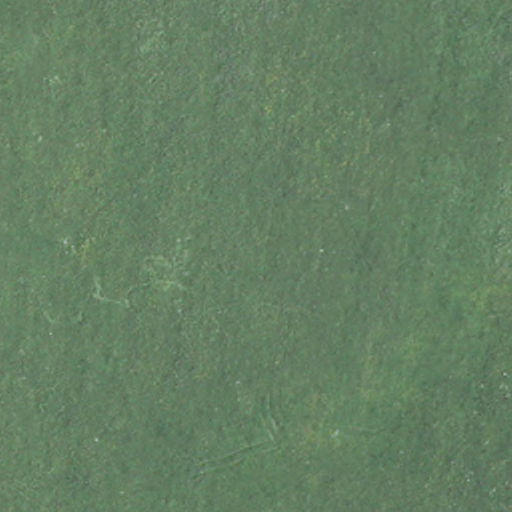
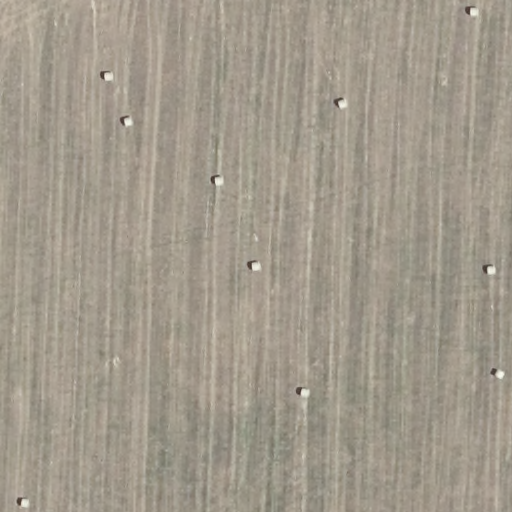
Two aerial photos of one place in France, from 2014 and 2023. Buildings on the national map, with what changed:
[]

